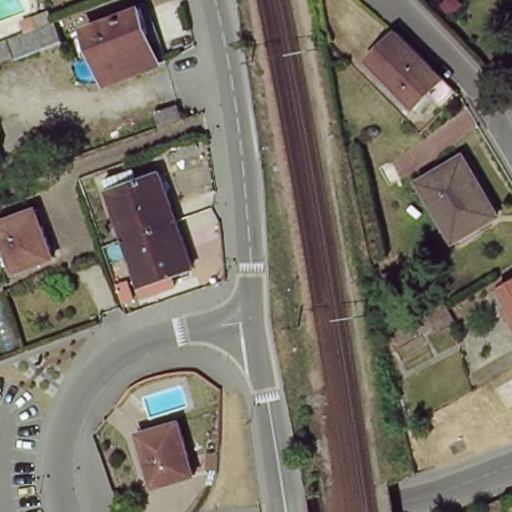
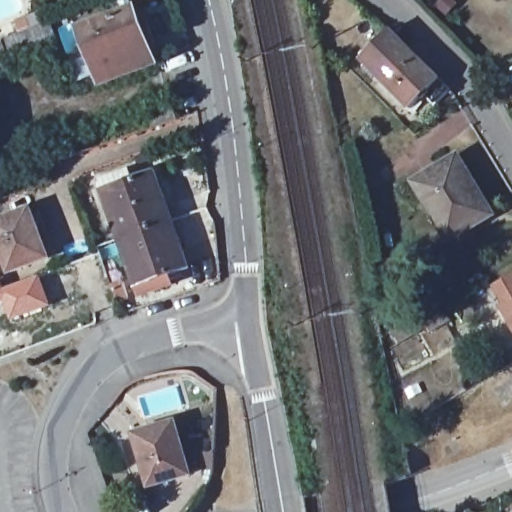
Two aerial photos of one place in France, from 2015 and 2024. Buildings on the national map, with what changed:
unchanged [(455,0),(459,4),(448,16),(436,6),(442,0),(455,0)]
unchanged [(135,9),(144,32),(151,29),(162,59),(156,62),(102,83),(82,29),(135,9)]
unchanged [(3,39),(51,21),(58,42),(57,43),(20,56),(10,60),(9,56),(0,60),(0,41),(3,39)]
unchanged [(441,79),(451,90),(439,103),(428,93),(411,109),(363,61),(393,31),(441,79)]
unchanged [(173,105),(178,119),(157,127),(152,113),(173,105)]
unchanged [(2,149),(0,151),(0,144),(2,149)]
unchanged [(427,202),(416,183),(459,157),(493,215),(457,237),(450,241),(427,202)]
unchanged [(31,173),(47,165),(53,180),(37,187),(31,173)]
unchanged [(105,179),(135,169),(140,180),(160,174),(176,222),(127,239),(109,192),(105,179)]
unchanged [(55,264),(15,278),(0,237),(0,228),(37,215),(55,264)]
unchanged [(176,222),(193,269),(143,286),(127,239),(176,222)]
new [(5,300),(3,288),(39,274),(51,305),(8,320),(3,304),(2,302),(5,300)]
new [(3,288),(5,300),(2,302),(3,304),(0,305),(0,279),(3,288)]
unchanged [(512,280),(512,324),(492,291),(512,280)]
unchanged [(441,303),(451,321),(431,333),(428,328),(399,344),(391,331),(420,315),(441,303)]
unchanged [(146,470),(135,434),(175,423),(191,476),(163,484),(152,488),(146,470)]
unchanged [(213,469),(213,471),(202,469),(204,454),(215,455),(213,469)]

